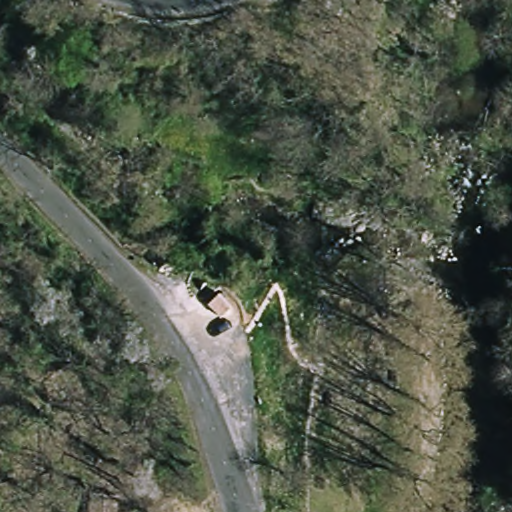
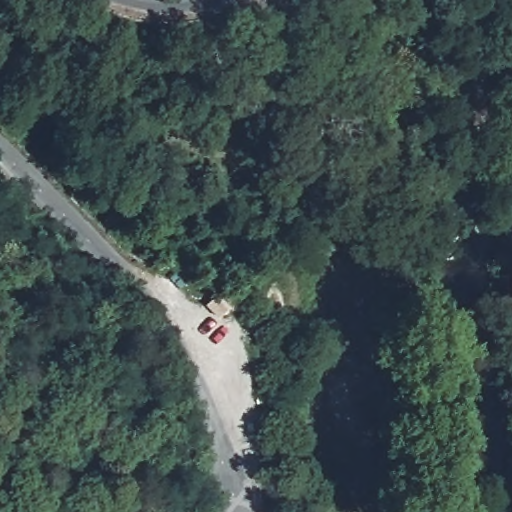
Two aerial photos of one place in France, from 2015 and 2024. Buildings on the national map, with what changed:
unchanged [(113,467),(140,471),(137,498),(110,495),(113,467)]

